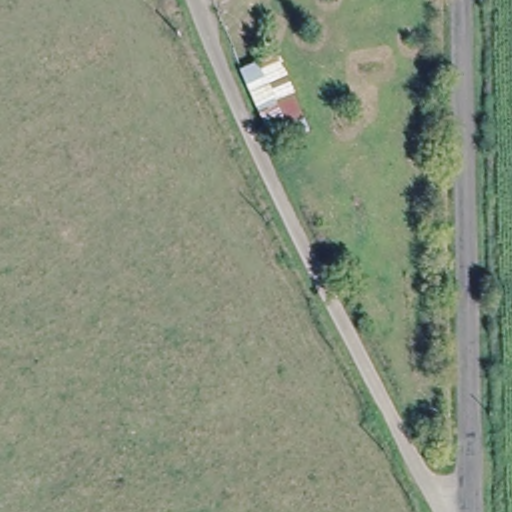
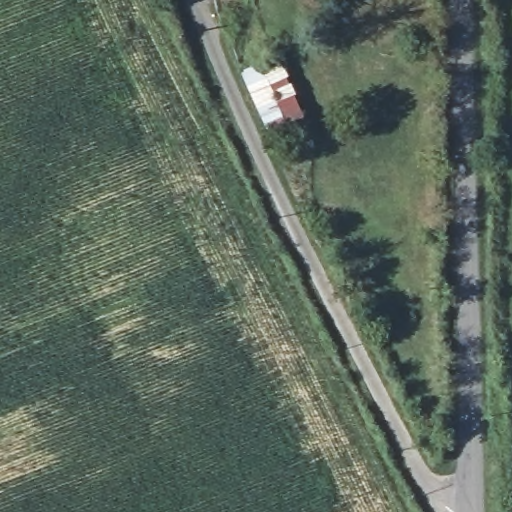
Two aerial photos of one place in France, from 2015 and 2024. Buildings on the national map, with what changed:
unchanged [(273,153),(240,81),(276,65),(307,137),(273,153)]

